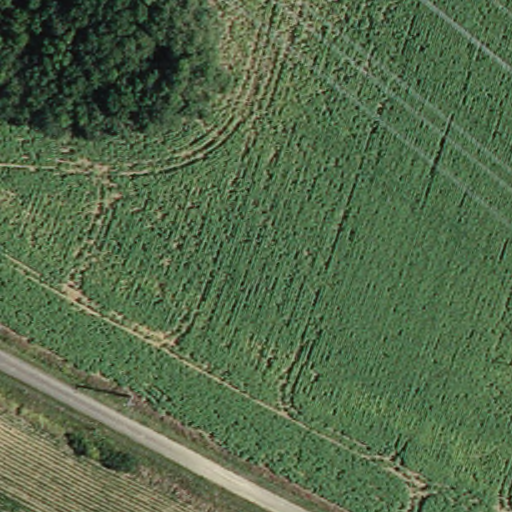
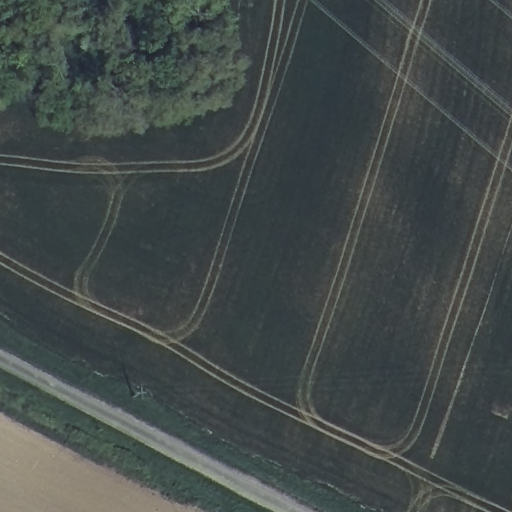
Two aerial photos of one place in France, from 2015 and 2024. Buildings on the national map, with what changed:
[]

